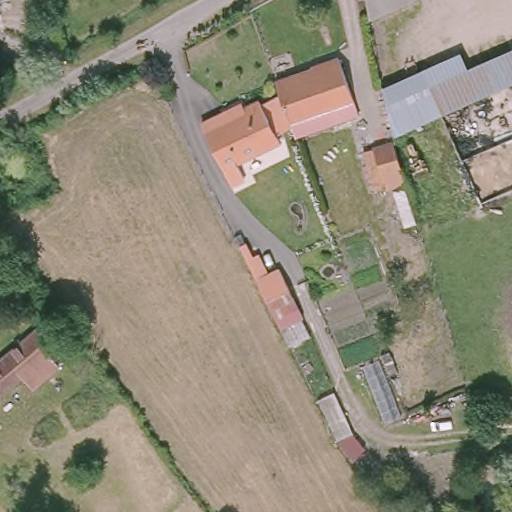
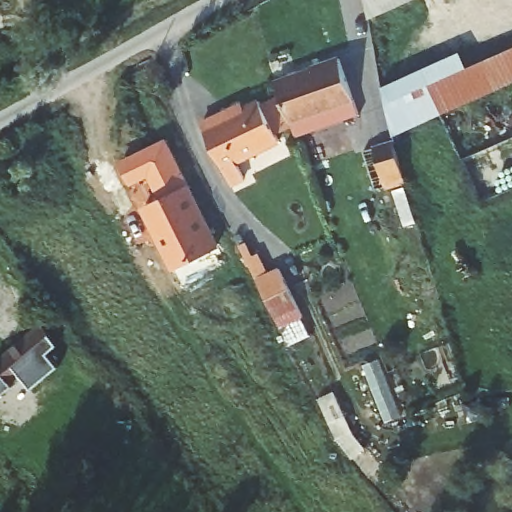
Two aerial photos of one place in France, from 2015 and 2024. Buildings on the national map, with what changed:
unchanged [(367,0),(379,0),(368,5),(367,0)]
unchanged [(384,87),(462,50),(470,66),(512,48),(512,84),(394,135),(384,87)]
unchanged [(293,131),(275,81),(336,58),(355,107),(348,110),(293,131)]
unchanged [(235,153),(244,168),(227,176),(195,114),(215,103),(219,109),(237,99),(255,90),(256,92),(271,85),(283,116),(271,123),(276,131),(235,153)]
new [(190,182),(220,246),(172,270),(141,207),(162,199),(150,174),(131,184),(120,161),(166,137),(190,182)]
unchanged [(396,137),(408,174),(380,185),(367,148),(396,137)]
unchanged [(298,308),(277,318),(243,249),(252,244),(261,264),(275,257),(298,308)]
unchanged [(37,322),(54,342),(46,347),(58,363),(32,384),(21,368),(0,385),(0,352),(37,322)]

